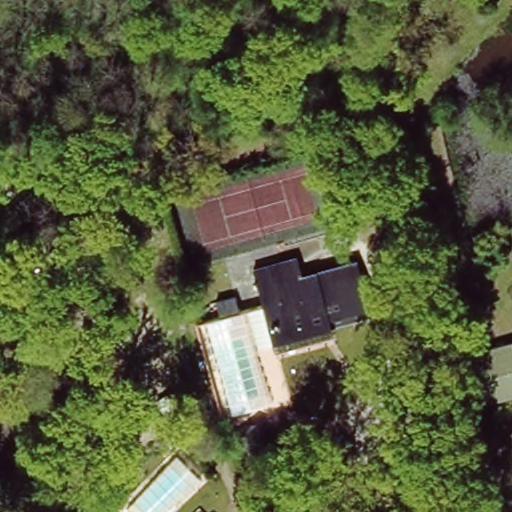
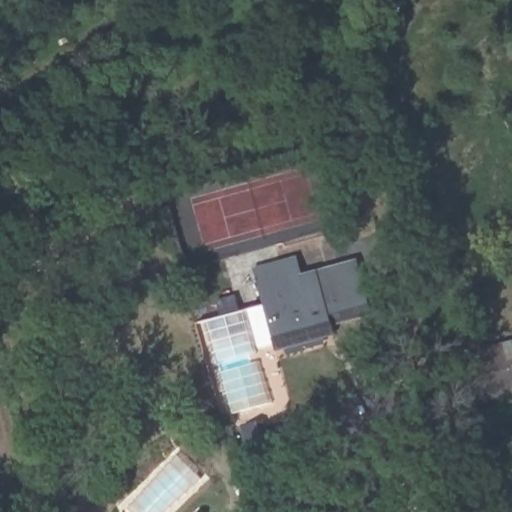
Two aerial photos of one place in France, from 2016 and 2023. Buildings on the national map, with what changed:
unchanged [(292,257),(300,289),(311,287),(307,273),(353,261),(365,307),(320,318),(322,330),(284,340),(273,298),(262,302),(252,267),(292,257)]
unchanged [(458,365),(512,351),(512,414),(473,425),(458,365)]
unchanged [(237,471),(227,433),(263,424),(273,461),(237,471)]

